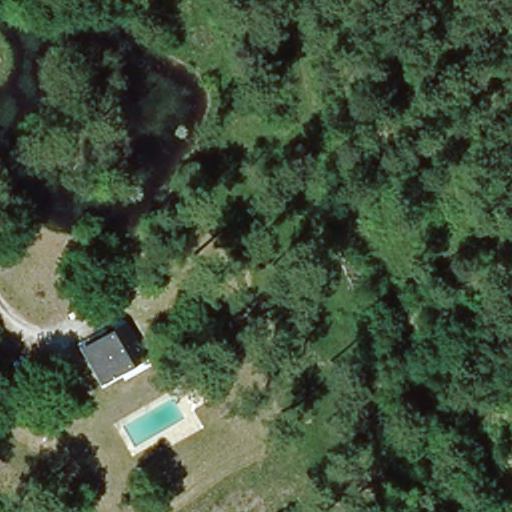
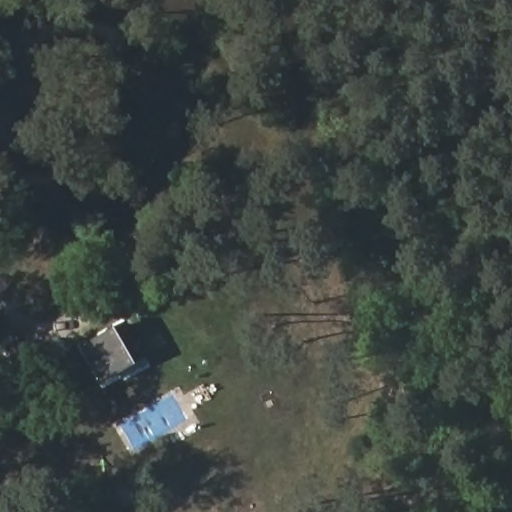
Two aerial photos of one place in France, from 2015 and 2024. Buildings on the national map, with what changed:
unchanged [(79,337),(118,317),(137,351),(102,378),(79,337)]

